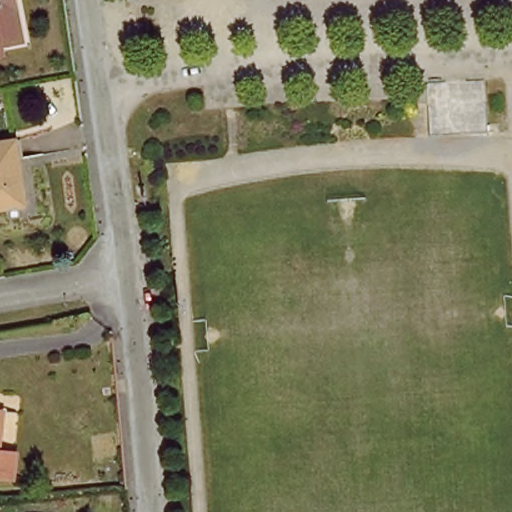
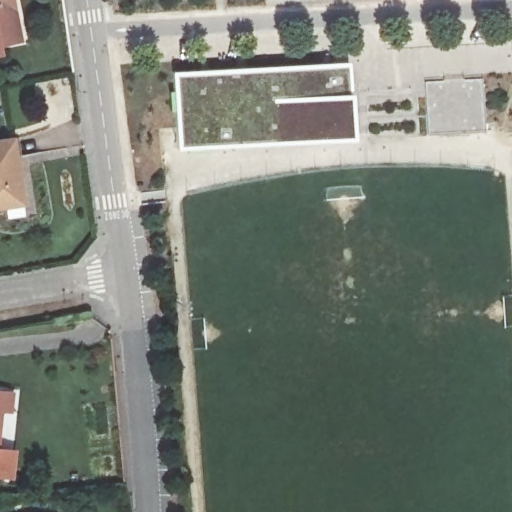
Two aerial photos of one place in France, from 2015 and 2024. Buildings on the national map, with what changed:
unchanged [(19,19),(21,34),(0,37),(0,0),(16,0),(19,19)]
new [(172,72),(345,63),(348,94),(350,138),(274,143),(177,147),(172,72)]
unchanged [(482,90),(486,142),(430,148),(425,96),(482,90)]
unchanged [(25,203),(0,206),(0,139),(17,137),(25,203)]
unchanged [(8,474),(0,474),(0,441),(13,442),(8,474)]

